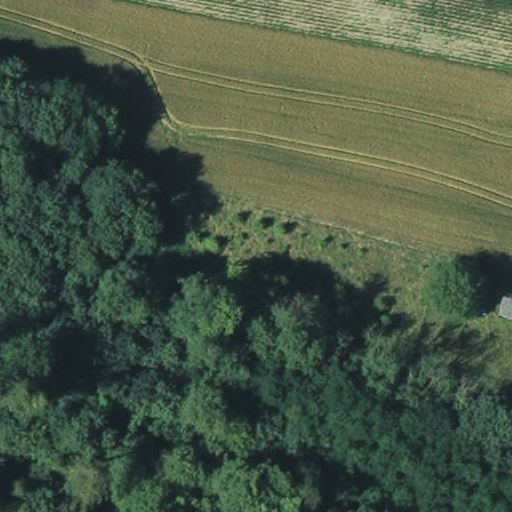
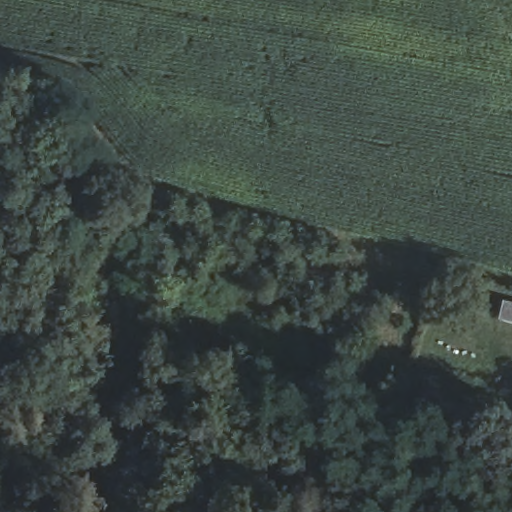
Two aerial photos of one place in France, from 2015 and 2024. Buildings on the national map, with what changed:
unchanged [(512,310),(512,323),(499,319),(502,308),(512,310)]

